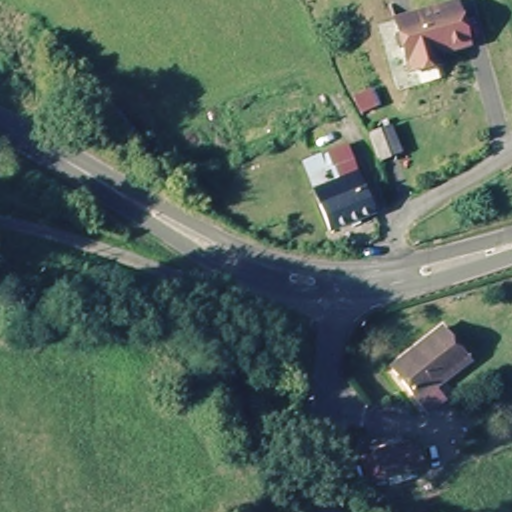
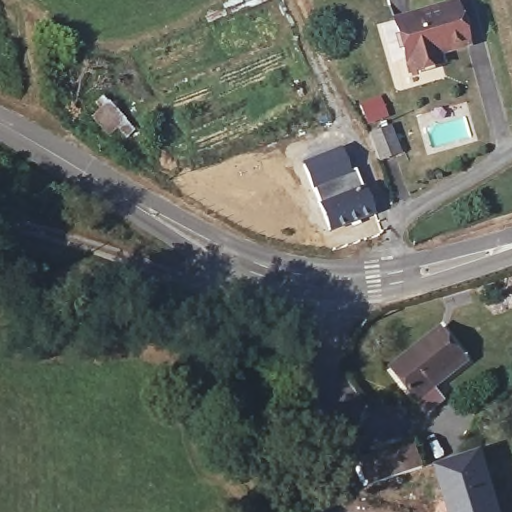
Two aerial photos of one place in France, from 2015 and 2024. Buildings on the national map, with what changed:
unchanged [(470,47),(434,57),(436,67),(410,75),(395,23),(457,5),(470,47)]
demolished [(126,124),(110,136),(92,117),(108,102),(126,124)]
unchanged [(395,156),(376,163),(365,136),(385,129),(395,156)]
unchanged [(372,214),(327,232),(311,192),(335,181),(325,154),(345,146),(372,214)]
demolished [(2,258),(29,267),(22,288),(0,281),(0,267),(2,258)]
unchanged [(427,412),(420,402),(393,369),(443,329),(470,361),(437,388),(445,397),(427,412)]
unchanged [(425,470),(382,483),(374,455),(416,442),(425,470)]
new [(483,448),(502,512),(448,512),(432,462),(483,448)]

